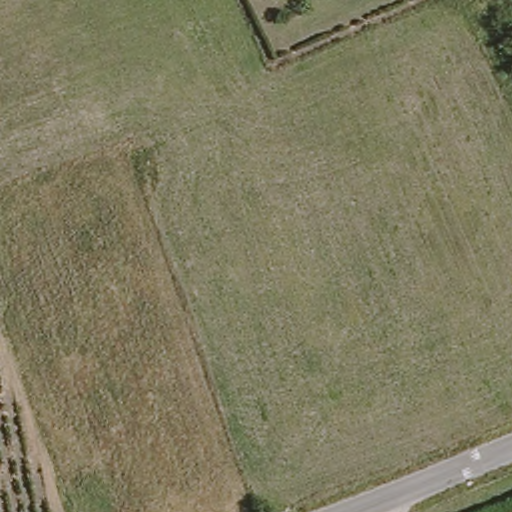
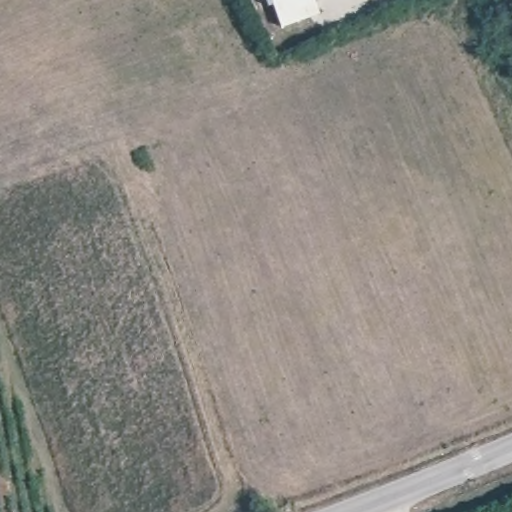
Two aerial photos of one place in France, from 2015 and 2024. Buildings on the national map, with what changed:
new [(320,13),(281,28),(272,4),(266,6),(264,0),(315,0),(320,13)]
unchanged [(506,1),(494,6),(491,0),(505,0),(506,1)]

